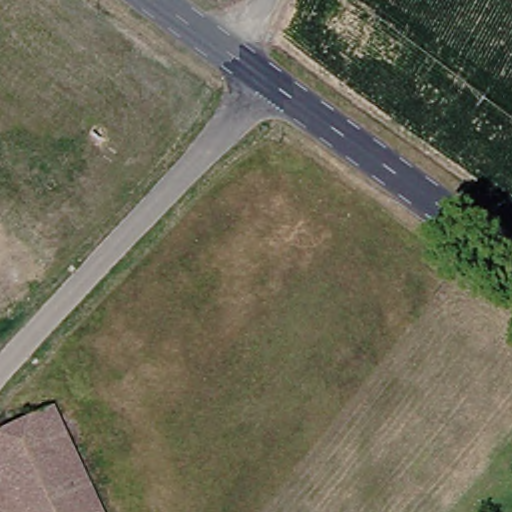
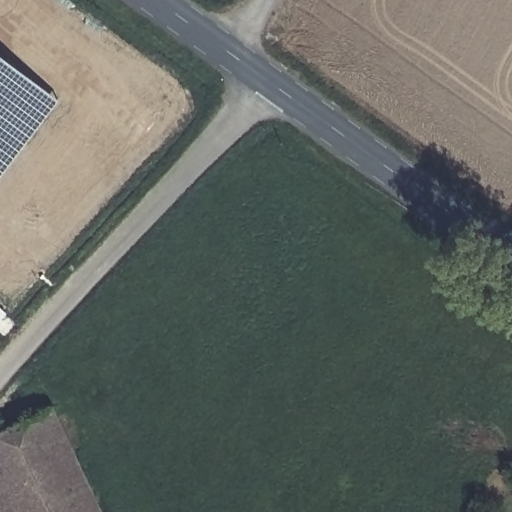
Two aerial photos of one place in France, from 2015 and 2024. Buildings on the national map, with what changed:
new [(59,101),(0,178),(0,56),(59,101)]
unchanged [(46,419),(87,512),(0,512),(0,440),(46,419)]

